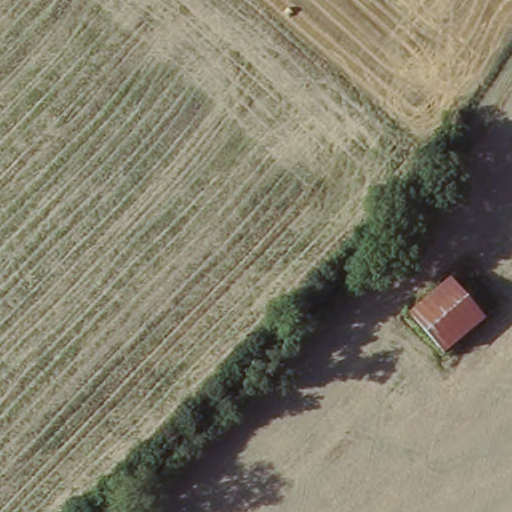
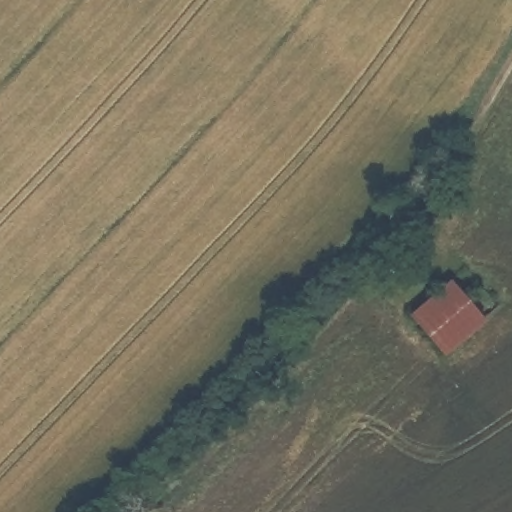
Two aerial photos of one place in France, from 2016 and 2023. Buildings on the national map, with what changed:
unchanged [(453,281),(483,319),(443,349),(415,311),(453,281)]

